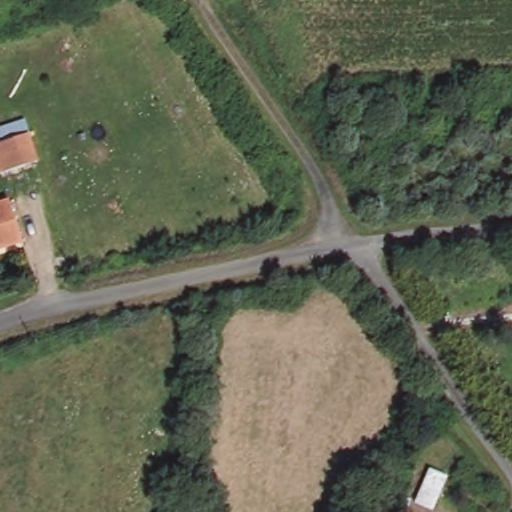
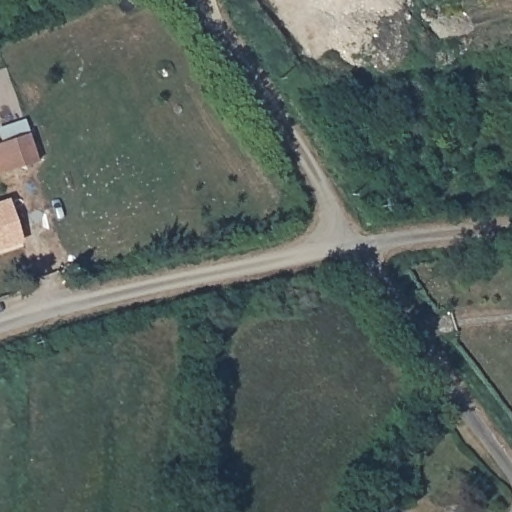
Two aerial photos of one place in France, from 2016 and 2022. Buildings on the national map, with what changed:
unchanged [(45,163),(38,165),(1,177),(0,173),(0,146),(35,135),(45,163)]
unchanged [(25,242),(0,251),(0,199),(9,196),(25,242)]

